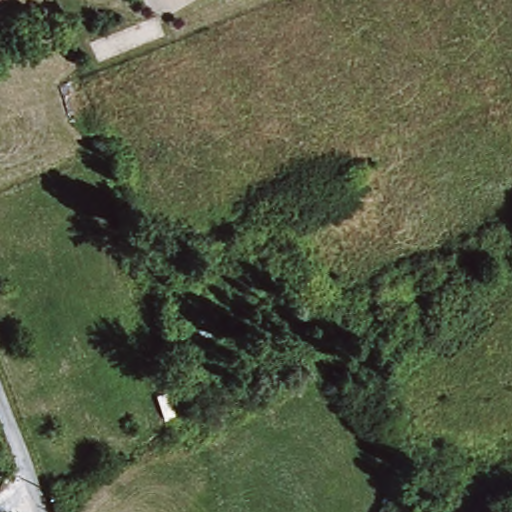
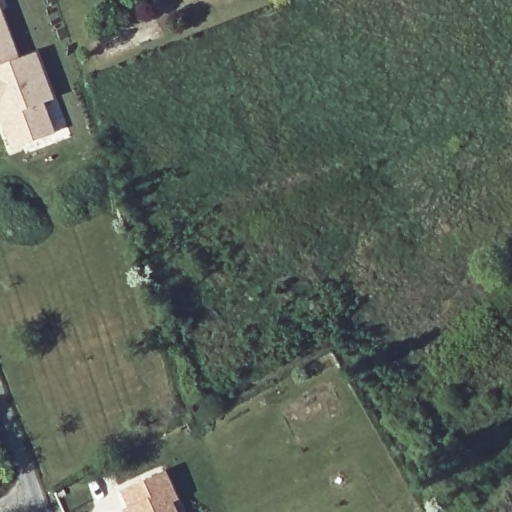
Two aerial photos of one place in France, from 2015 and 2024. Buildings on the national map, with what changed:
new [(1,68),(0,65),(0,53),(4,51),(0,41),(0,27),(14,63),(1,68)]
new [(0,41),(4,51),(0,53),(0,41)]
new [(30,56),(48,100),(38,104),(50,134),(10,150),(0,125),(0,65),(1,68),(30,56)]
unchanged [(218,336),(209,339),(214,346),(222,344),(225,354),(214,359),(216,374),(206,376),(185,322),(210,314),(218,336)]
new [(123,510),(129,508),(122,492),(165,473),(177,501),(172,504),(176,512),(124,512),(123,510)]

